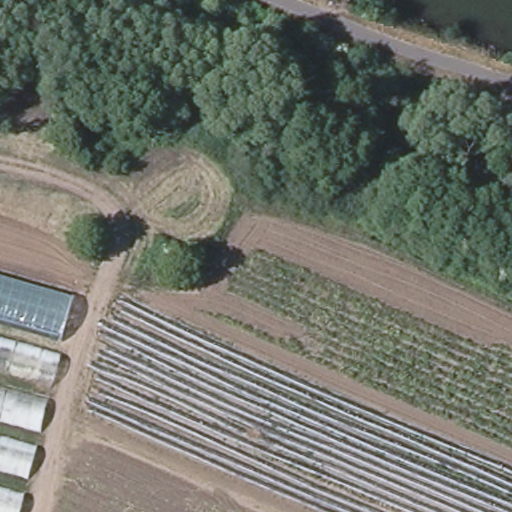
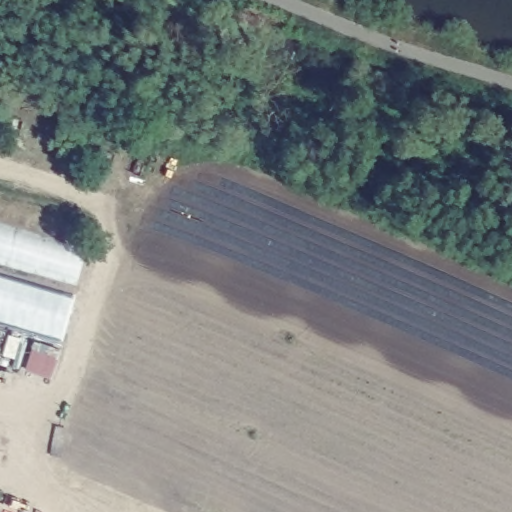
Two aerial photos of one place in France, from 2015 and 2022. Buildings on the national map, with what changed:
new [(76,285),(0,262),(0,226),(84,250),(76,285)]
new [(61,335),(0,317),(0,276),(73,297),(61,335)]
demolished [(21,512),(0,512),(0,333),(63,350),(21,512)]

